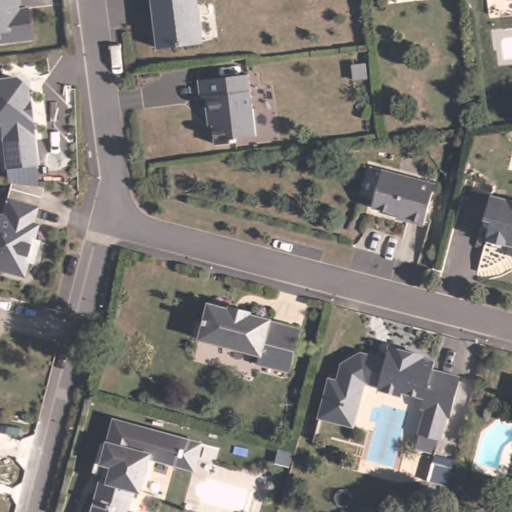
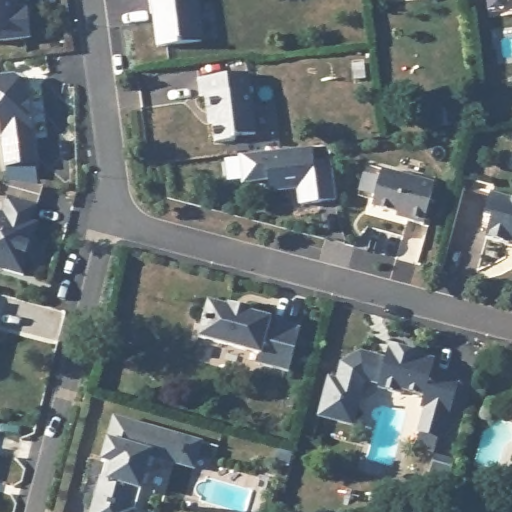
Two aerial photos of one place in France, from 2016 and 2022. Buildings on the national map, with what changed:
unchanged [(17,1),(18,14),(34,11),(39,42),(0,47),(0,0),(21,0),(21,1),(17,1)]
unchanged [(157,49),(152,0),(197,0),(203,43),(157,49)]
unchanged [(246,74),(256,136),(235,139),(235,144),(215,149),(210,116),(205,116),(203,99),(197,100),(196,81),(246,74)]
unchanged [(16,89),(21,92),(27,93),(36,168),(8,171),(2,127),(0,125),(0,82),(16,79),(16,89)]
new [(312,148),(314,164),(331,161),(336,201),(302,205),(300,189),(270,192),(268,180),(245,183),(241,156),(312,148)]
unchanged [(412,219),(412,214),(404,213),(375,205),(385,167),(438,180),(435,196),(430,222),(412,219)]
unchanged [(507,243),(485,238),(489,219),(483,218),(489,192),(512,197),(512,239),(508,238),(507,243)]
unchanged [(35,226),(41,229),(38,245),(42,247),(37,269),(31,268),(28,282),(11,279),(4,269),(0,272),(0,219),(6,220),(10,202),(42,209),(35,226)]
unchanged [(200,338),(204,322),(209,302),(229,307),(229,305),(251,311),(251,312),(251,313),(271,317),(271,319),(301,326),(290,370),(258,362),(260,353),(200,338)]
unchanged [(422,432),(428,407),(424,406),(427,395),(422,394),(405,389),(404,394),(380,388),(381,384),(367,380),(361,402),(361,404),(355,425),(336,421),(321,417),(323,411),(331,378),(340,379),(344,363),(363,352),(388,358),(399,351),(411,354),(412,350),(424,353),(423,356),(436,359),(434,368),(462,374),(458,387),(452,413),(447,412),(441,437),(422,432)]
unchanged [(137,512),(93,512),(93,510),(106,462),(103,461),(107,443),(114,416),(174,432),(186,435),(203,439),(196,467),(179,462),(152,454),(143,489),(139,503),(137,512)]
unchanged [(467,479),(463,496),(448,493),(453,474),(467,479)]

